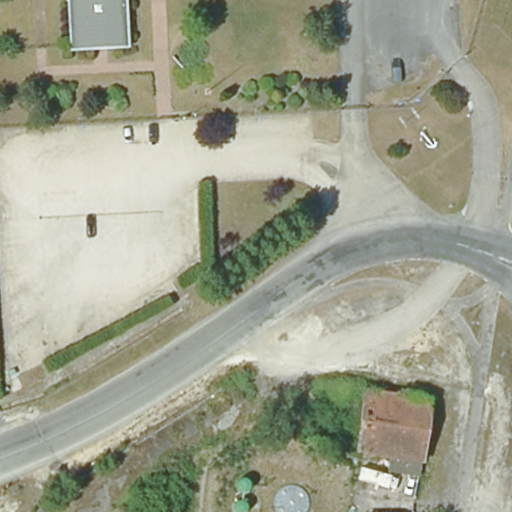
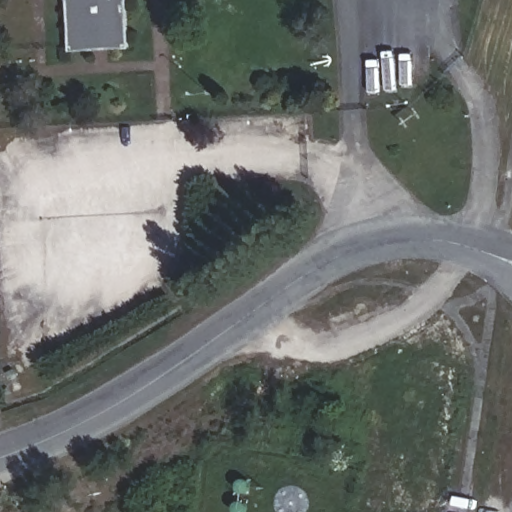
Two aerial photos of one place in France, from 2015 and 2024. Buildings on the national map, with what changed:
unchanged [(128,49),(71,51),(68,0),(126,0),(128,49)]
demolished [(409,112),(409,123),(394,124),(394,112),(409,112)]
demolished [(422,463),(358,455),(367,394),(432,401),(422,463)]

